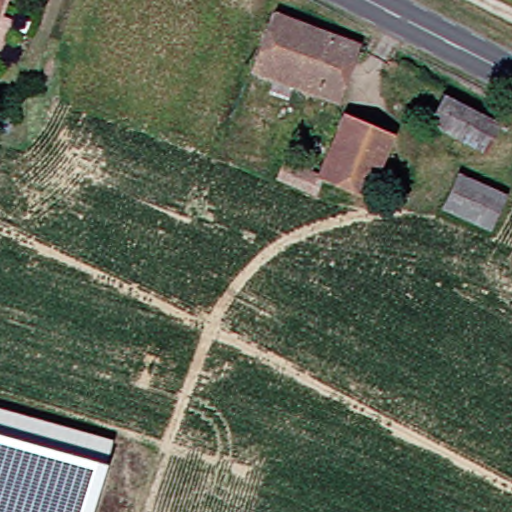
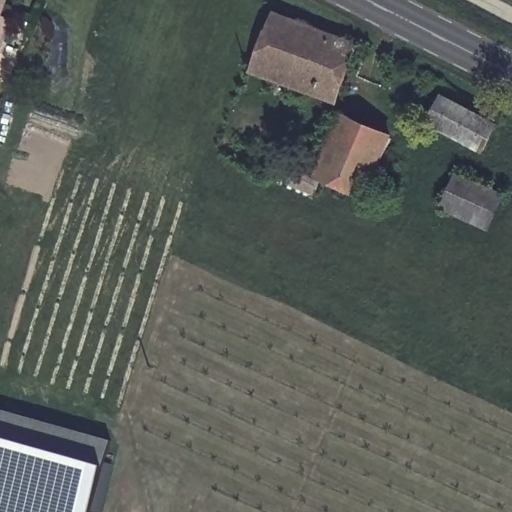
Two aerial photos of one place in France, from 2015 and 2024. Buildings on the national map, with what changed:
unchanged [(259,64),(280,6),(336,31),(321,90),(259,64)]
unchanged [(336,31),(361,42),(341,100),(321,90),(336,31)]
unchanged [(500,125),(490,149),(433,124),(443,100),(500,125)]
unchanged [(394,131),(371,195),(329,177),(320,192),(280,175),(288,157),(320,170),(344,112),(394,131)]
unchanged [(505,194),(493,228),(446,209),(461,175),(505,194)]
unchanged [(112,439),(91,512),(0,512),(0,406),(112,439)]

